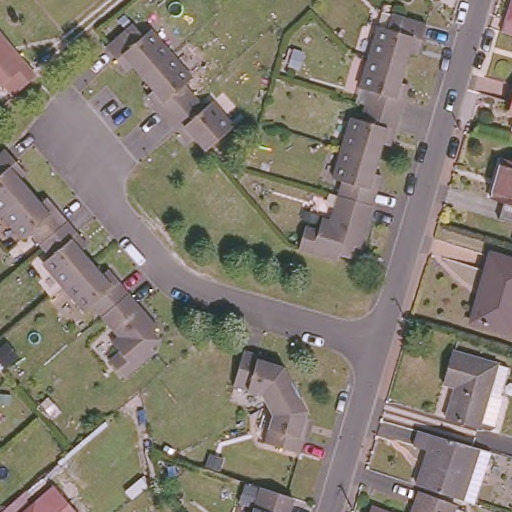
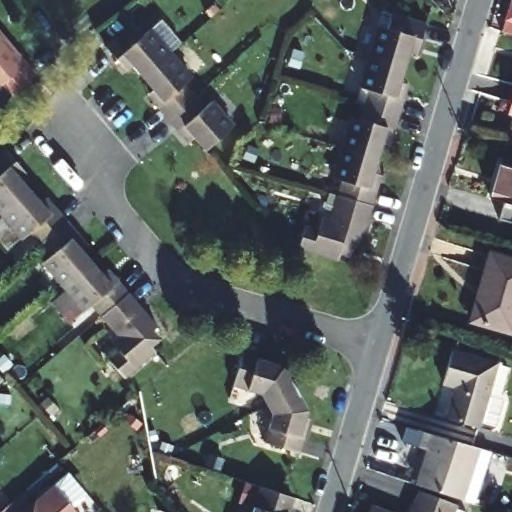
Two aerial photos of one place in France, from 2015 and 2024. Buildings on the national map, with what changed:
unchanged [(510,0),(512,0),(512,22),(504,20),(510,0)]
unchanged [(392,140),(388,139),(386,148),(381,147),(381,150),(377,161),(373,177),(377,179),(376,180),(375,186),(378,186),(376,194),(371,210),(359,252),(353,251),(342,247),(339,258),(337,265),(299,254),(299,252),(297,252),(303,231),(316,235),(319,222),(328,225),(335,199),(339,184),(331,181),(340,151),(349,120),(356,123),(361,107),(366,92),(358,90),(366,60),(374,30),(383,31),(388,16),(424,27),(419,49),(414,47),(411,56),(407,55),(403,70),(398,86),(399,86),(403,87),(402,90),(400,95),(404,96),(398,117),(392,140)]
unchanged [(150,36),(158,30),(173,48),(189,67),(181,75),(196,91),(211,110),(219,102),(236,122),(211,144),(208,147),(196,135),(194,136),(193,136),(191,135),(187,130),(184,131),(169,114),(154,96),(156,95),(151,88),(155,85),(145,73),(134,61),(132,63),(131,64),(130,62),(125,57),(123,59),(108,41),(110,39),(135,18),(150,36)]
unchanged [(13,96),(3,85),(0,86),(0,33),(36,76),(13,96)]
unchanged [(512,112),(508,110),(512,98),(512,112)]
unchanged [(25,175),(22,179),(20,180),(30,192),(40,204),(42,202),(46,200),(51,207),(53,206),(54,205),(68,222),(83,240),(80,242),(86,248),(83,251),(93,263),(102,275),(103,276),(107,273),(113,280),(115,278),(129,294),(158,329),(153,333),(144,340),(154,353),(123,380),(108,362),(118,352),(111,343),(117,337),(100,317),(90,305),(83,310),(64,287),(45,264),(51,258),(41,246),(30,233),(23,239),(4,215),(0,210),(0,154),(4,150),(6,149),(22,166),(20,168),(22,170),(25,175)]
unchanged [(512,157),(512,218),(499,215),(504,200),(491,195),(503,154),(512,157)]
unchanged [(491,255),(512,261),(512,330),(511,335),(471,322),(491,255)]
unchanged [(512,330),(512,335),(511,335),(512,330)]
unchanged [(278,355),(276,361),(283,362),(296,385),(309,406),(306,413),(309,415),(305,426),(308,426),(301,449),(299,448),(274,441),(265,438),(272,411),(273,411),(268,401),(263,391),(248,387),(234,383),(240,360),(244,346),(266,352),(278,355)]
unchanged [(484,427),(479,431),(467,428),(436,418),(444,386),(433,383),(443,350),(486,362),(498,366),(490,394),(492,400),(484,427)]
unchanged [(411,491),(422,457),(408,452),(413,437),(473,455),(478,456),(486,458),(469,510),(456,506),(411,491)]
unchanged [(255,508),(262,486),(288,495),(289,495),(296,497),(290,512),(254,512),(255,508)]
unchanged [(49,510),(62,500),(72,512),(13,512),(35,493),(49,510)]
unchanged [(413,497),(451,511),(451,512),(408,512),(413,497)]

